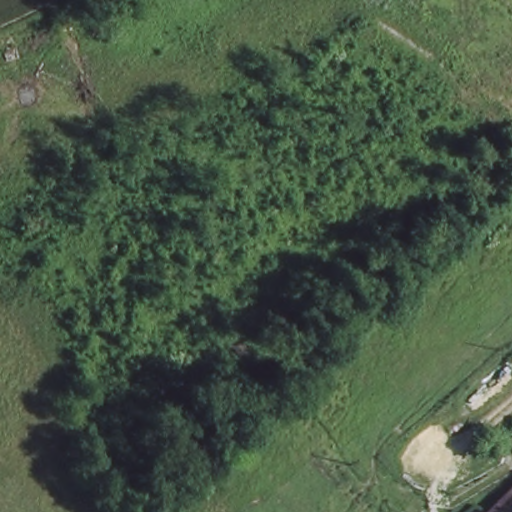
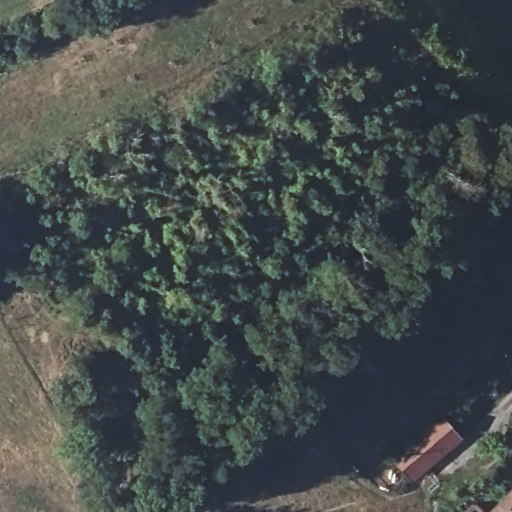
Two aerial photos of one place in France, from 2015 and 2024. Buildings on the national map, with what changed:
new [(438,413),(462,442),(410,485),(385,456),(438,413)]
unchanged [(497,512),(512,498),(512,512),(497,512)]

